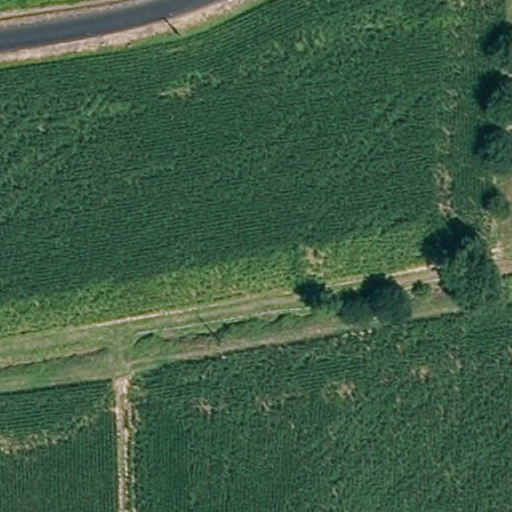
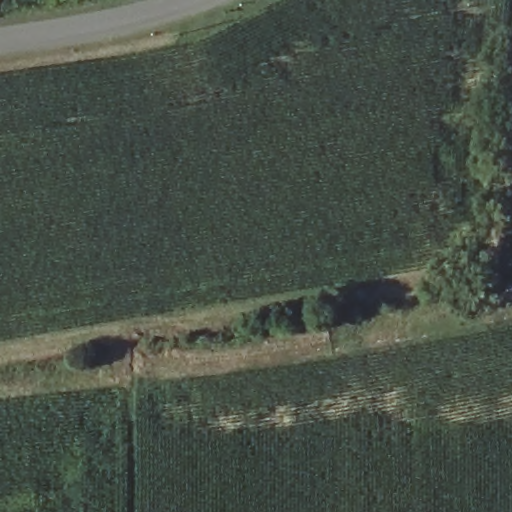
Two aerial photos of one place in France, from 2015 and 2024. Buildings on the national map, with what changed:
[]

